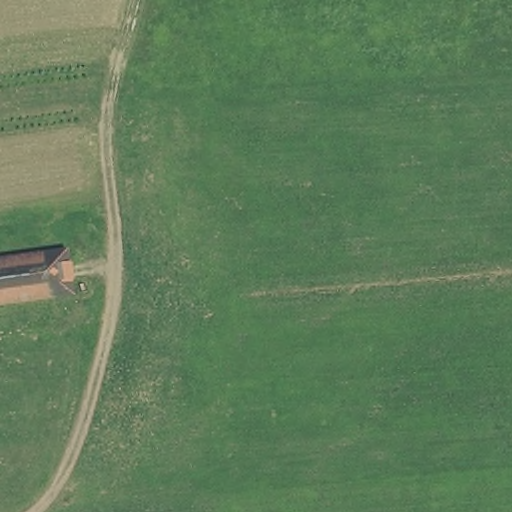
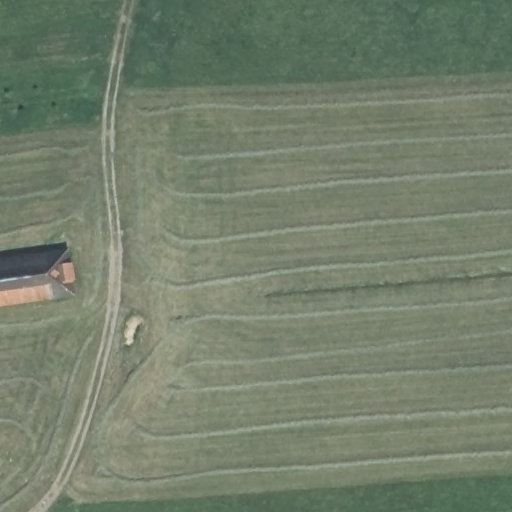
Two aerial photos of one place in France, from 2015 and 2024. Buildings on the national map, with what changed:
unchanged [(0,258),(66,249),(73,297),(0,306),(0,258)]

